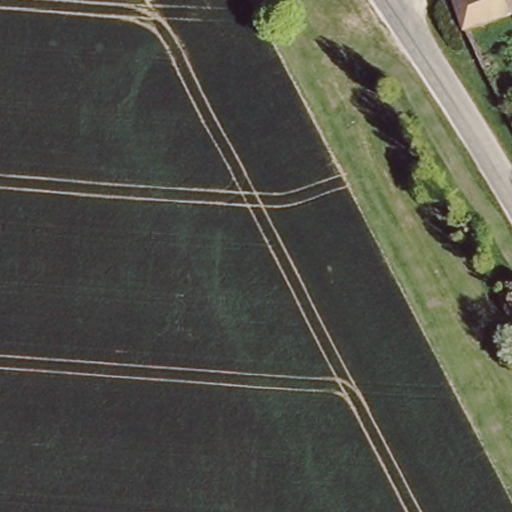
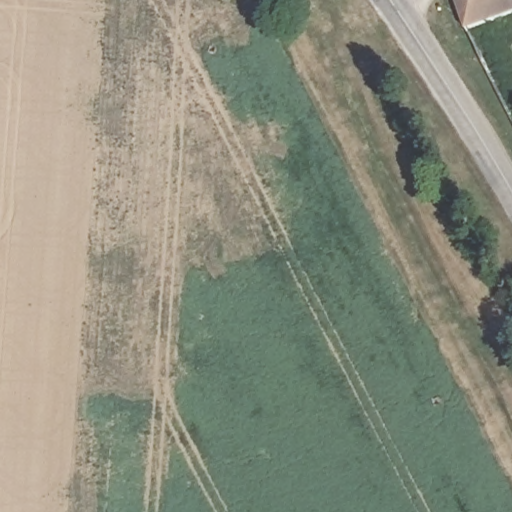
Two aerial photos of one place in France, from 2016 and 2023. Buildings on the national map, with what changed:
unchanged [(456,0),(512,0),(512,7),(465,28),(456,0)]

